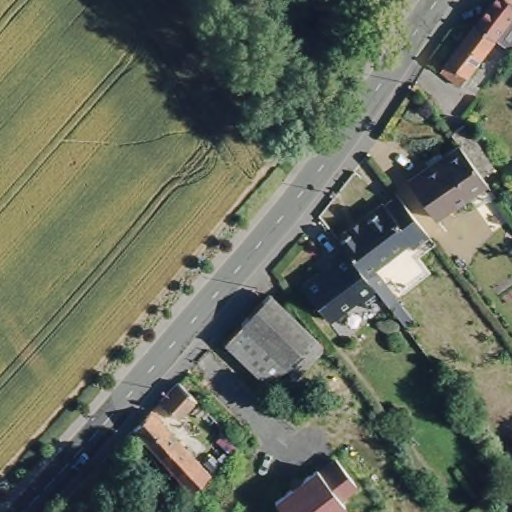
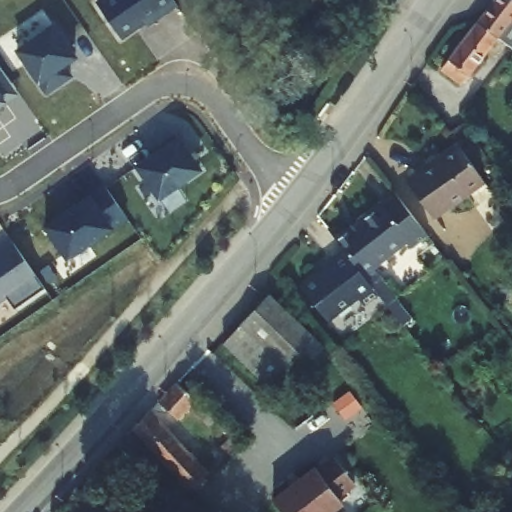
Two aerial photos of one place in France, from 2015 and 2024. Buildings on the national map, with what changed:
new [(174,0),(175,1),(145,23),(144,20),(119,36),(95,1),(96,0),(174,0)]
unchanged [(494,0),(512,0),(512,17),(497,37),(484,26),(477,22),(494,0)]
unchanged [(512,17),(512,49),(497,37),(512,17)]
unchanged [(461,86),(440,70),(477,22),(484,26),(497,37),(461,86)]
new [(52,23),(72,55),(60,64),(67,74),(45,91),(15,49),(52,23)]
new [(0,95),(0,67),(16,90),(2,99),(0,95)]
new [(2,99),(0,101),(0,95),(2,99)]
unchanged [(464,209),(456,199),(422,223),(397,186),(448,150),(440,138),(452,129),(483,172),(477,176),(470,181),(480,197),(464,209)]
new [(200,170),(159,198),(136,166),(165,148),(162,144),(175,136),(200,170)]
new [(125,217),(67,258),(45,228),(104,187),(125,217)]
unchanged [(381,205),(382,207),(397,196),(400,201),(427,235),(427,236),(411,249),(405,241),(371,268),(396,299),(387,306),(383,301),(379,296),(377,294),(362,274),(352,262),(350,259),(344,251),(336,241),(381,205)]
new [(11,240),(42,285),(14,306),(17,310),(0,321),(0,248),(11,240)]
unchanged [(363,305),(357,297),(327,320),(300,286),(315,274),(317,276),(332,264),(330,261),(344,251),(350,259),(352,262),(362,274),(377,294),(363,305)]
unchanged [(324,342),(299,370),(292,366),(272,388),(225,344),(270,296),(324,342)]
unchanged [(177,420),(158,402),(176,383),(195,401),(177,420)]
unchanged [(197,499),(190,490),(188,491),(132,430),(150,411),(208,474),(205,477),(212,486),(197,499)]
unchanged [(234,450),(229,446),(234,441),(239,445),(234,450)]
unchanged [(335,456),(355,483),(338,498),(343,504),(333,512),(282,512),(272,500),(335,456)]

